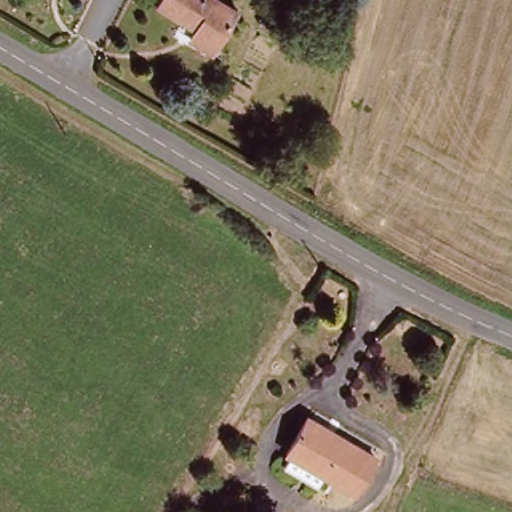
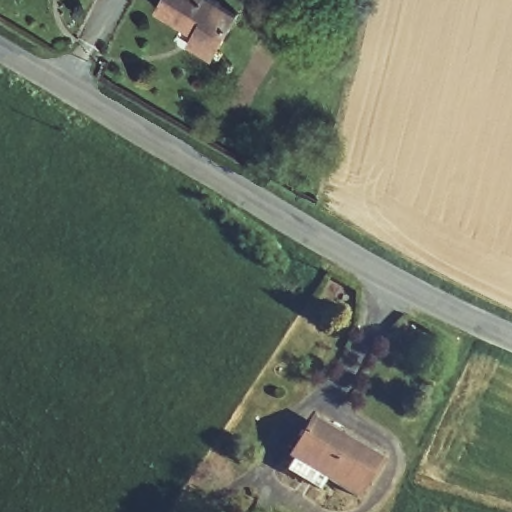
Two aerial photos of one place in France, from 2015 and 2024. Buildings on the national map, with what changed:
unchanged [(187,35),(193,22),(165,8),(170,0),(229,0),(242,7),(239,15),(220,52),(187,35)]
unchanged [(365,490),(302,457),(318,424),(382,457),(365,490)]

